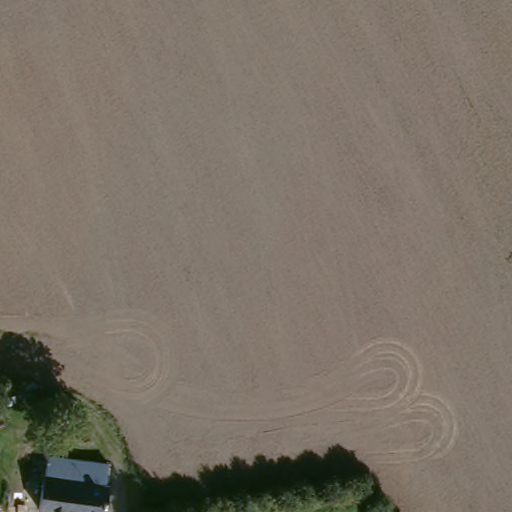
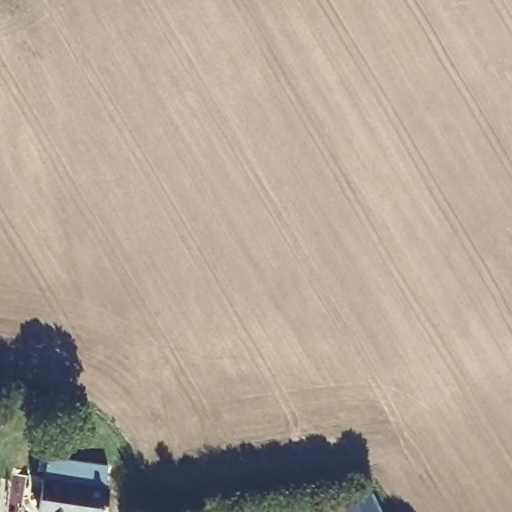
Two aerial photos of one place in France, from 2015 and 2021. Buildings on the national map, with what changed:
unchanged [(52,463),(73,466),(101,470),(107,470),(105,483),(104,490),(108,491),(106,512),(46,512),(50,483),(52,463)]

